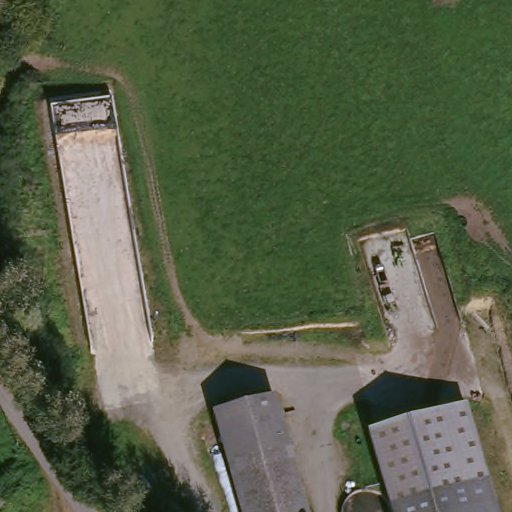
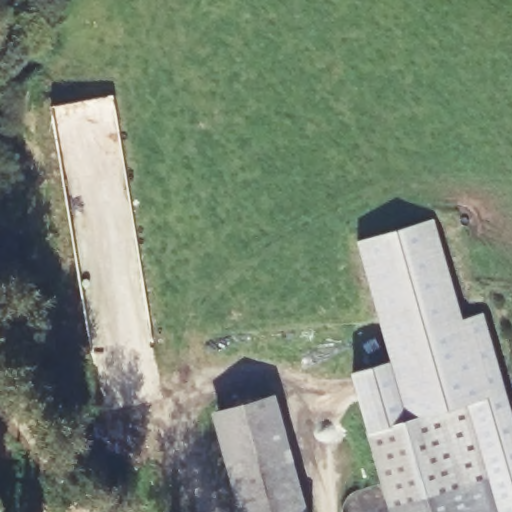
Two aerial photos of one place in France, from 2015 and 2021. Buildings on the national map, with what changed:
new [(368,431),(352,371),(391,360),(357,241),(435,219),(464,320),(484,314),(512,412),(512,512),(390,512),(367,431),(368,431)]
unchanged [(235,410),(267,399),(296,492),(302,510),(303,512),(229,512),(201,421),(235,410)]
demolished [(446,408),(456,405),(480,485),(382,508),(365,449),(360,434),(446,408)]
demolished [(382,508),(480,485),(488,512),(383,512),(382,508)]

